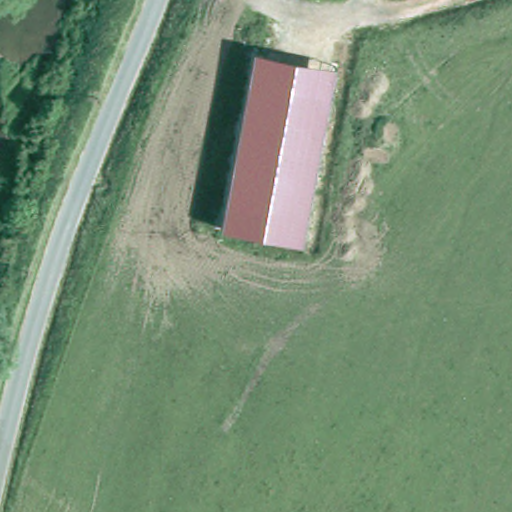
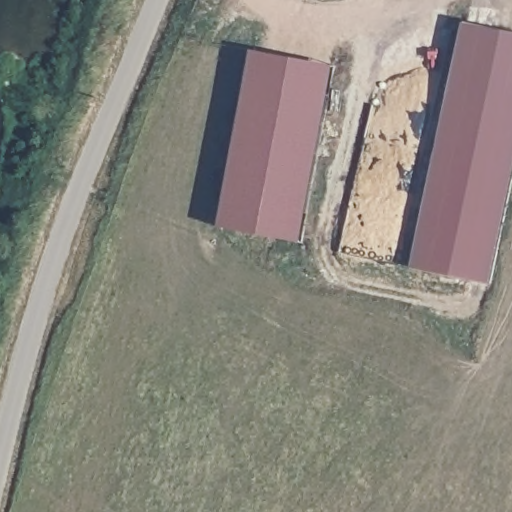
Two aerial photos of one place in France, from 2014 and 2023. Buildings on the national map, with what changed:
new [(464,21),(512,32),(512,169),(487,284),(410,266),(464,21)]
unchanged [(333,66),(300,244),(222,228),(253,50),(333,66)]

